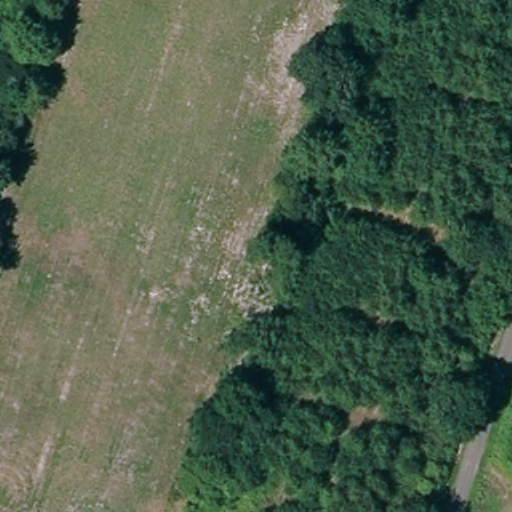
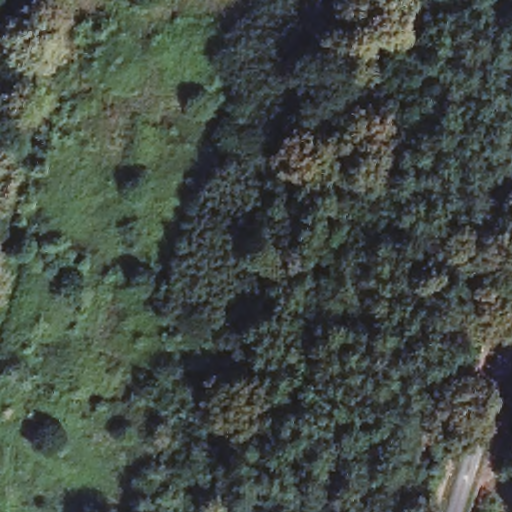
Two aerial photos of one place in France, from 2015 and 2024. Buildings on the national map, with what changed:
[]

